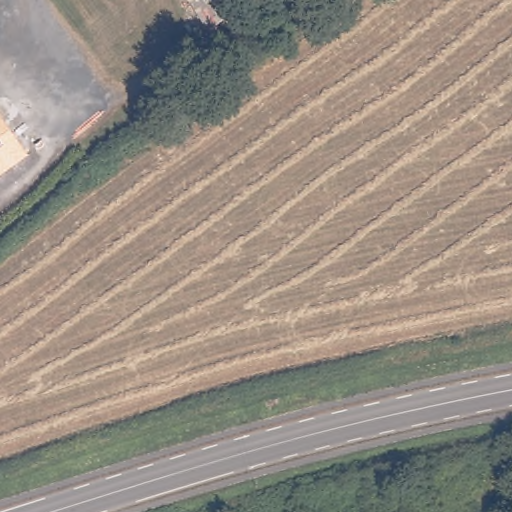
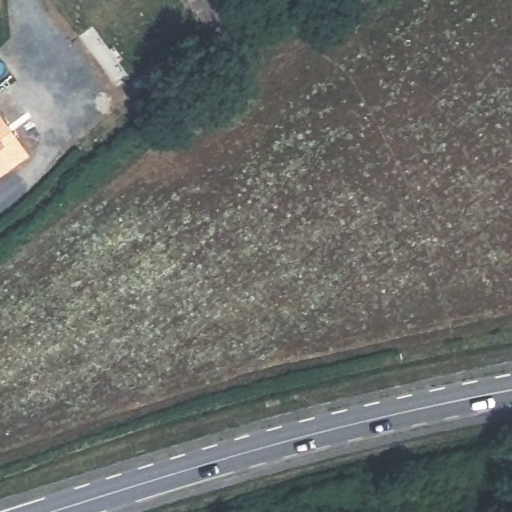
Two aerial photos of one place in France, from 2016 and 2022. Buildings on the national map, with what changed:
unchanged [(207,30),(187,0),(216,0),(227,16),(207,30)]
unchanged [(24,154),(0,171),(0,116),(24,154)]

